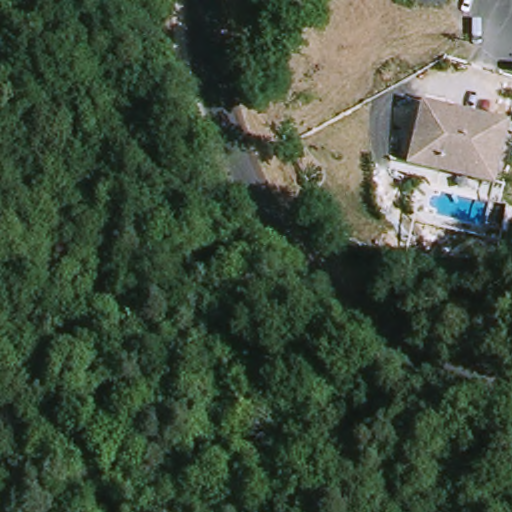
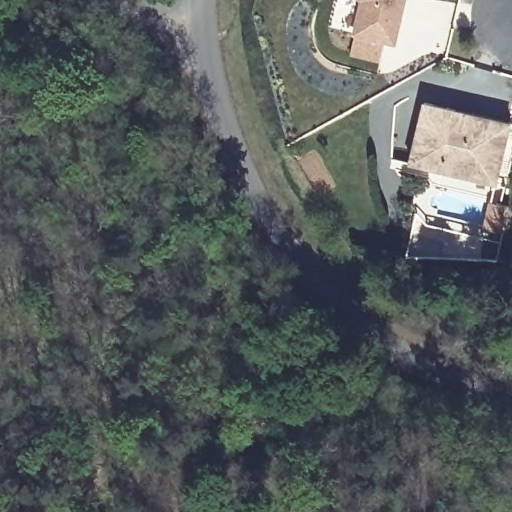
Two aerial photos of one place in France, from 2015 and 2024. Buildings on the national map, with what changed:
new [(364,0),(407,0),(397,46),(387,44),(382,63),(353,55),(358,36),(366,4),(364,0)]
unchanged [(412,166),(426,105),(457,112),(512,125),(512,129),(511,133),(502,173),(498,187),(442,174),(412,166)]
new [(492,203),(511,208),(505,233),(487,229),(492,203)]

